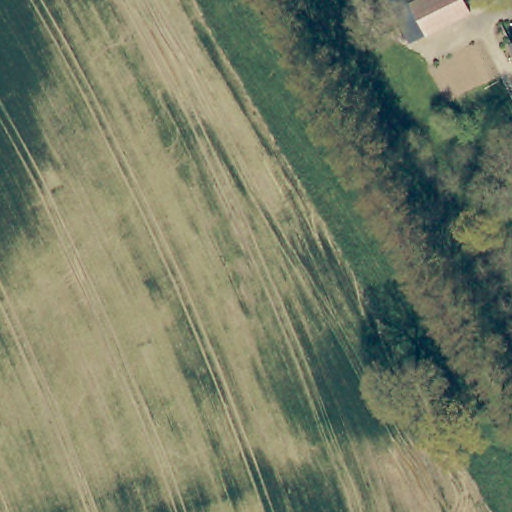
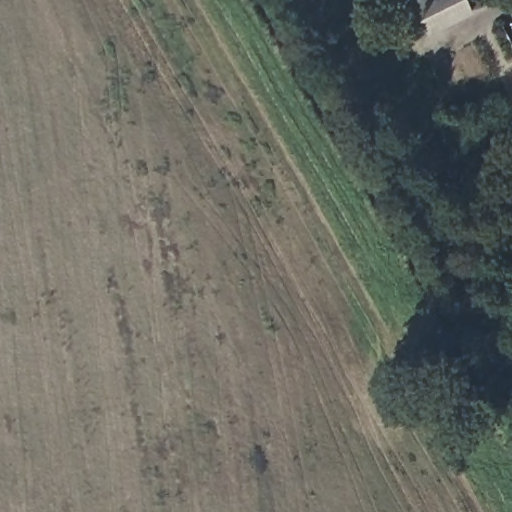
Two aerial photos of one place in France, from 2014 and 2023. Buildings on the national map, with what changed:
unchanged [(472,7),(475,14),(432,36),(429,30),(416,5),(426,0),(468,0),(472,7)]

